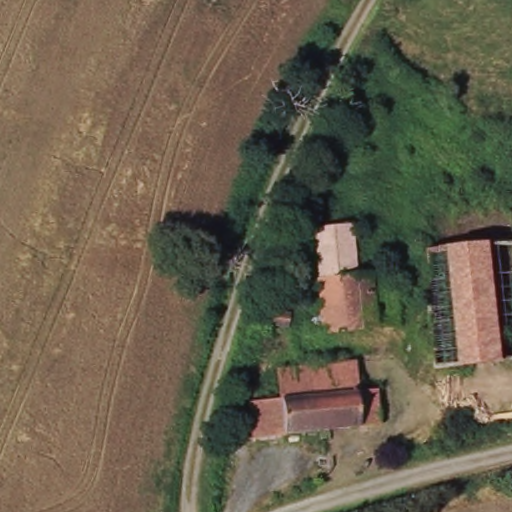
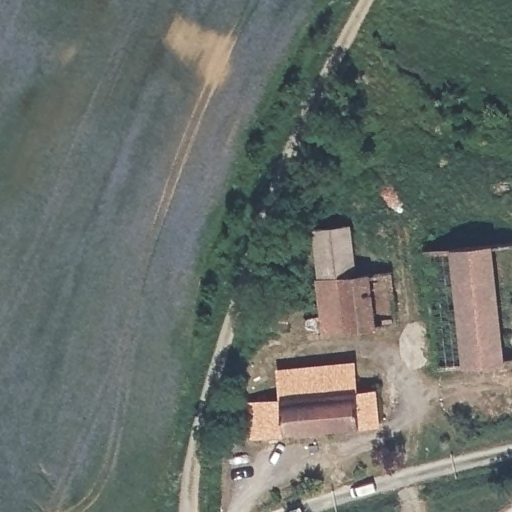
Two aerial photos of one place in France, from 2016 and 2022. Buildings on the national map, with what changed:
unchanged [(333,332),(334,338),(310,341),(308,320),(323,318),(314,229),(349,223),(355,274),(392,268),(398,323),(333,332)]
unchanged [(433,368),(422,251),(451,246),(495,243),(512,242),(512,361),(433,368)]
unchanged [(291,314),(289,326),(263,322),(261,311),(291,314)]
unchanged [(250,402),(284,398),(281,371),(355,363),(358,390),(377,389),(380,422),(254,437),(250,402)]

